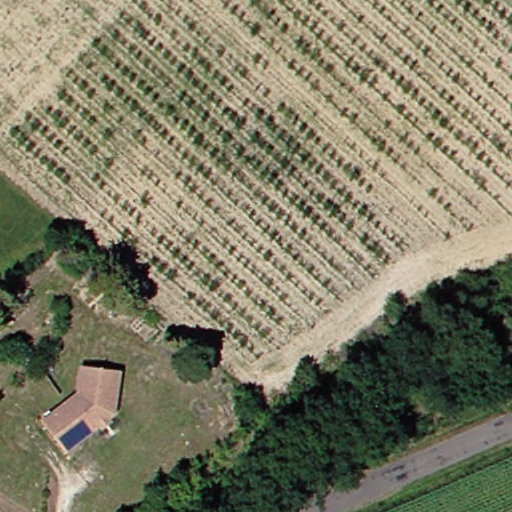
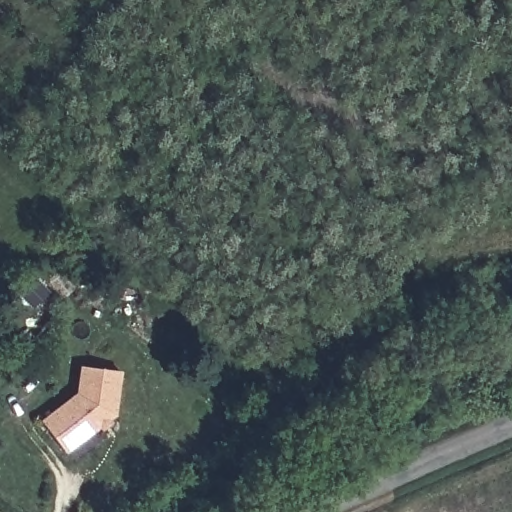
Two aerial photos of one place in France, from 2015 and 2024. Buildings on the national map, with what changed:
unchanged [(79,397),(75,368),(113,363),(121,406),(86,456),(53,435),(79,397)]

